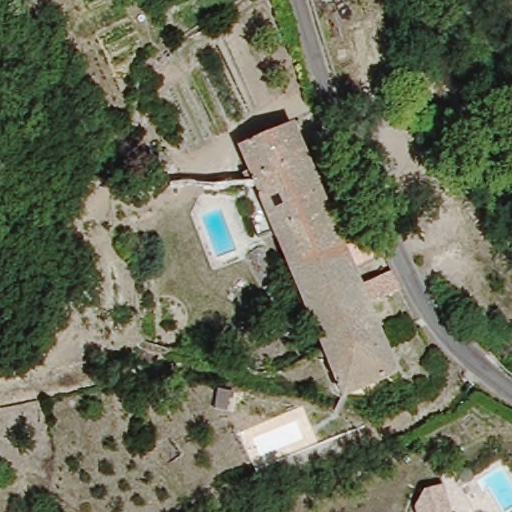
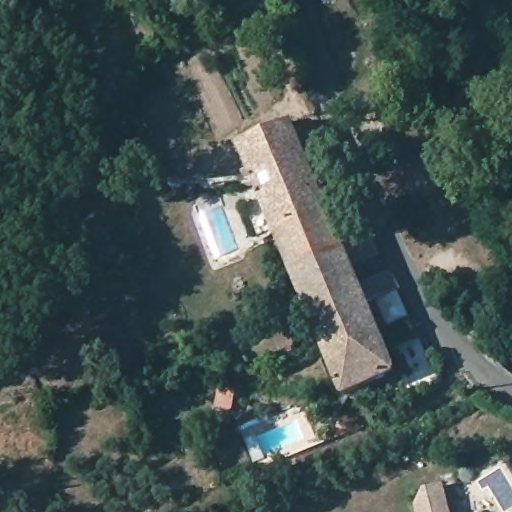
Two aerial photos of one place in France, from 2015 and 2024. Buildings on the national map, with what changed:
unchanged [(283,131),(339,252),(289,276),(264,224),(247,186),(233,154),(283,131)]
unchanged [(397,294),(365,309),(368,315),(316,337),(289,276),(339,252),(368,239),(376,255),(346,270),(358,291),(388,277),(397,294)]
unchanged [(368,315),(396,376),(344,398),(331,369),(316,337),(368,315)]
unchanged [(450,512),(416,512),(415,508),(423,490),(444,486),(450,512)]

